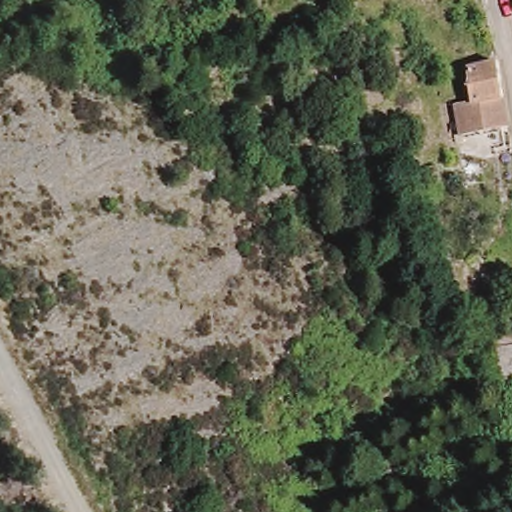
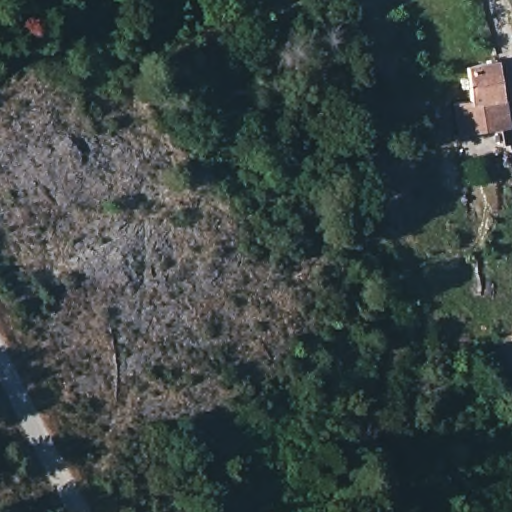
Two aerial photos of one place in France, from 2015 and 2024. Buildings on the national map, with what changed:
unchanged [(472,98),(468,64),(497,58),(503,94),(472,98)]
unchanged [(461,131),(455,101),(461,99),(472,98),(503,94),(507,124),(466,130),(461,131)]
unchanged [(496,374),(493,344),(512,343),(512,373),(496,374)]

